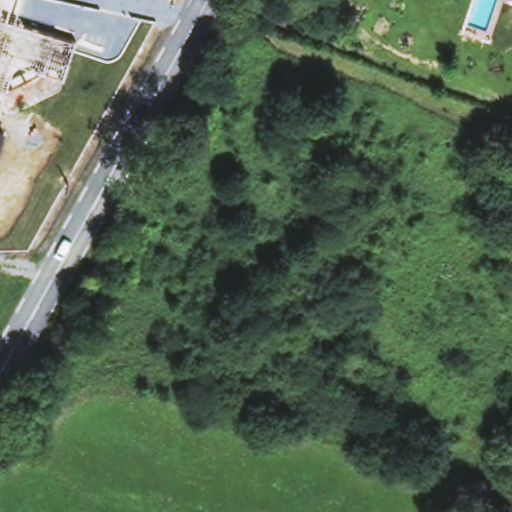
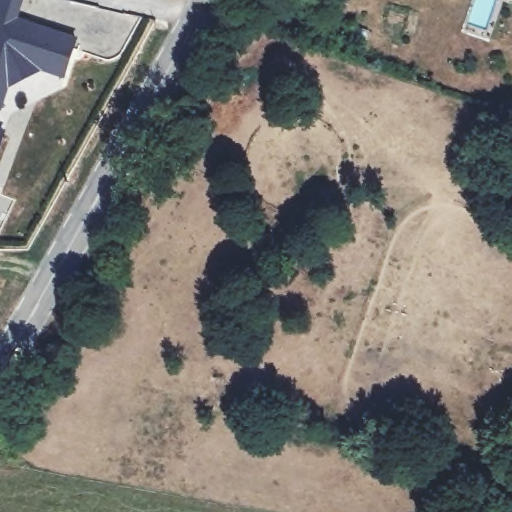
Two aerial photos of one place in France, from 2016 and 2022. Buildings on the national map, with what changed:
new [(17,20),(78,38),(66,76),(46,70),(10,88),(2,111),(0,111),(0,0),(23,0),(17,20)]
unchanged [(6,131),(0,148),(0,129),(6,131)]

